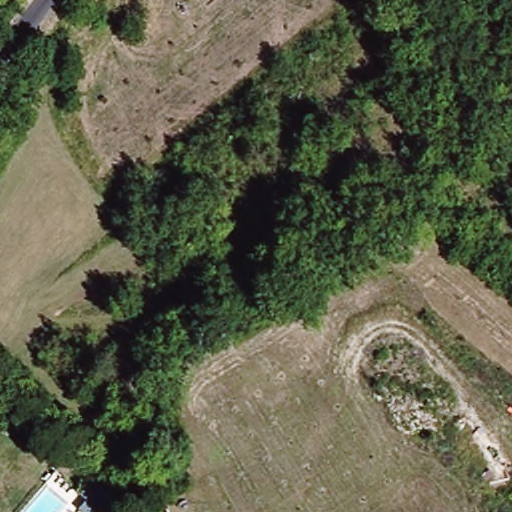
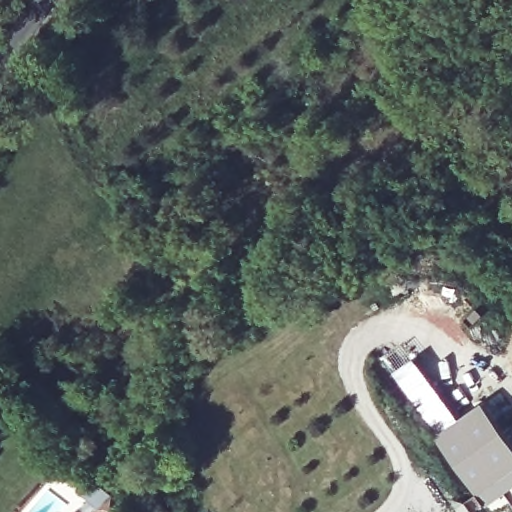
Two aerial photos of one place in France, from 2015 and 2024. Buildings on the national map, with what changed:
new [(512,438),(512,472),(478,495),(435,437),(486,402),(512,438)]
demolished [(472,426),(475,428),(474,434),(471,437),(466,437),(461,430),(467,425),(472,426)]
unchanged [(54,497),(65,485),(79,497),(70,508),(54,497)]
demolished [(130,512),(116,512),(120,508),(123,505),(130,512)]

